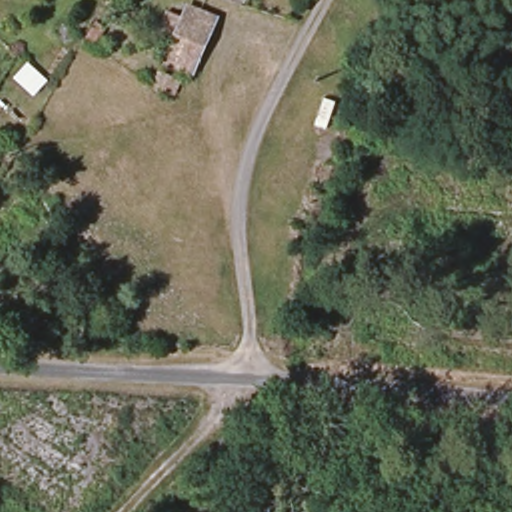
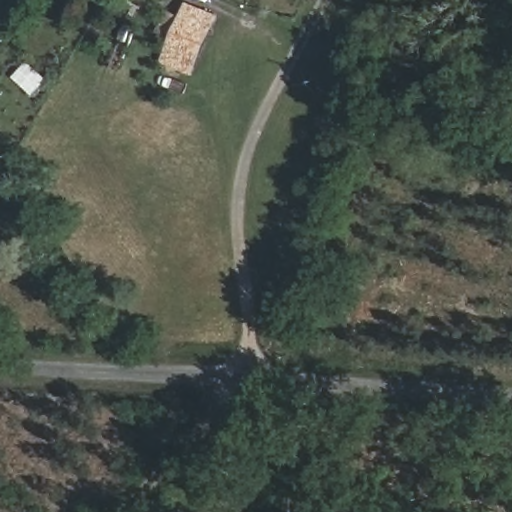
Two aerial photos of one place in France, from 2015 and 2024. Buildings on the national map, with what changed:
unchanged [(162,61),(188,6),(215,17),(191,73),(162,61)]

